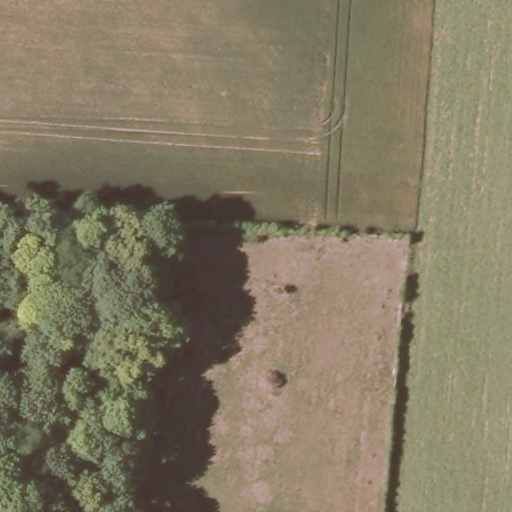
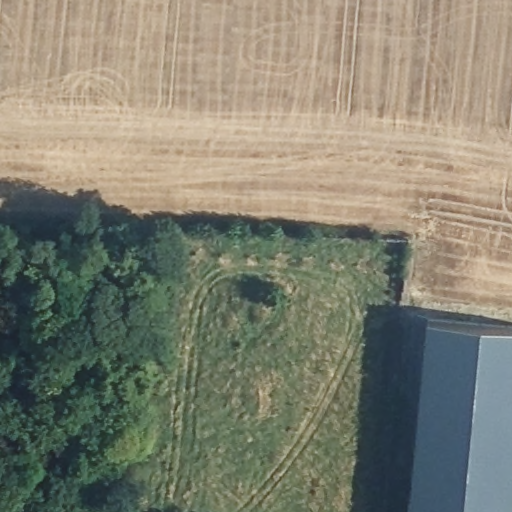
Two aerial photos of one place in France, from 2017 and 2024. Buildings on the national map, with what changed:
new [(512,324),(512,512),(409,512),(410,495),(427,316),(453,319),(512,324)]

